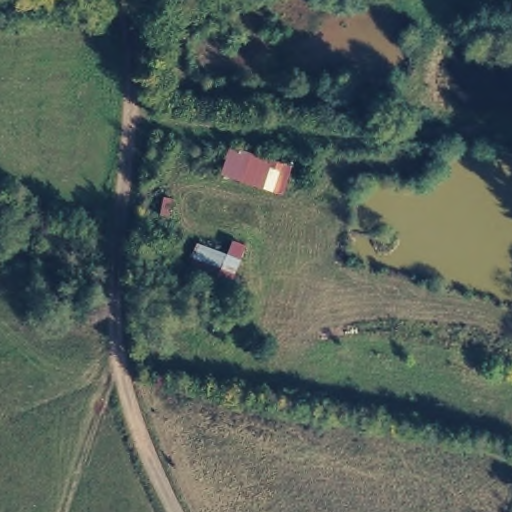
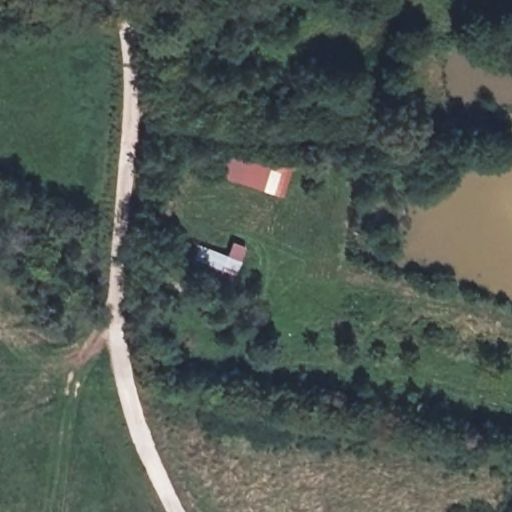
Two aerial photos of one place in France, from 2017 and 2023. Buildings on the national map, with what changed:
unchanged [(280,164),(276,198),(220,178),(230,146),(280,164)]

